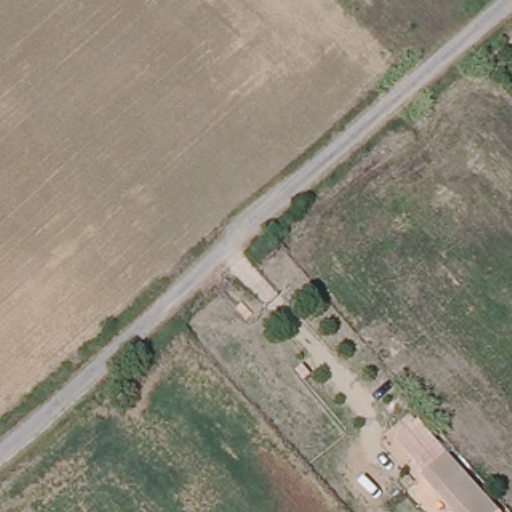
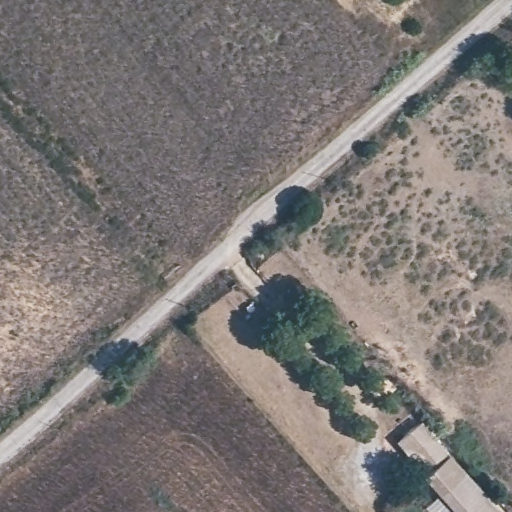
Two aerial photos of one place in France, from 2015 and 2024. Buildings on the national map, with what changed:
unchanged [(425,490),(417,482),(422,476),(392,440),(417,422),(459,464),(432,487),(425,490)]
unchanged [(459,464),(501,512),(455,512),(432,487),(459,464)]

